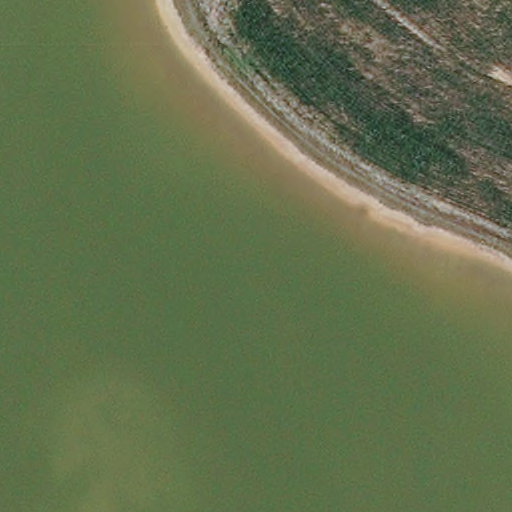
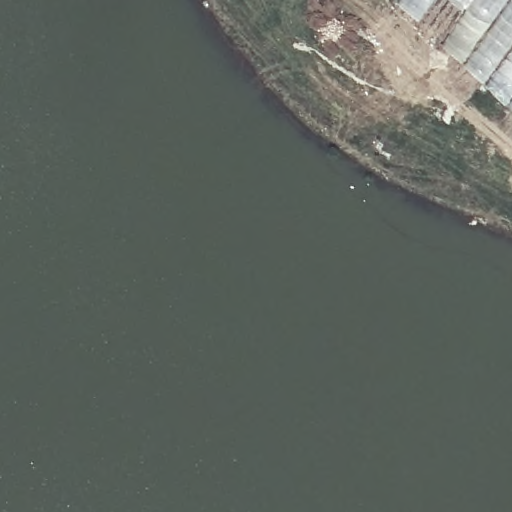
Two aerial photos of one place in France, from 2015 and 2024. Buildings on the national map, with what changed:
new [(396,1),(397,0),(434,0),(418,21),(396,1)]
new [(470,0),(512,0),(512,110),(441,44),(470,0)]
new [(456,0),(463,0),(460,3),(456,0)]

